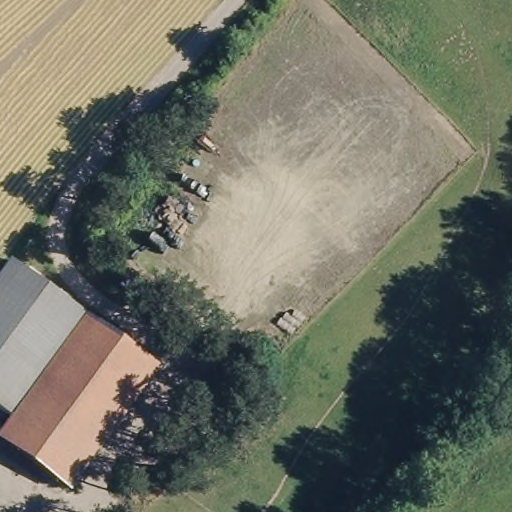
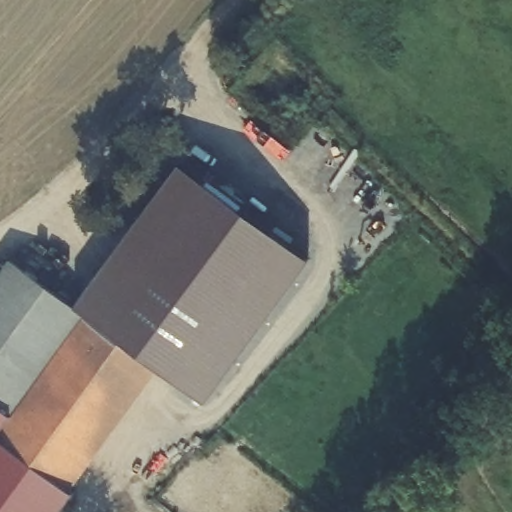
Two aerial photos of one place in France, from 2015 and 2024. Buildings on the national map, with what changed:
new [(308,260),(204,404),(155,370),(86,315),(74,306),(179,164),(308,260)]
unchanged [(0,272),(12,258),(44,283),(0,338),(0,272)]
unchanged [(6,416),(0,411),(0,338),(44,283),(86,315),(6,416)]
unchanged [(155,370),(58,492),(0,446),(0,424),(6,416),(86,315),(155,370)]
new [(0,424),(0,411),(6,416),(0,424)]
new [(63,486),(72,493),(59,512),(0,512),(0,446),(58,492),(63,486)]

